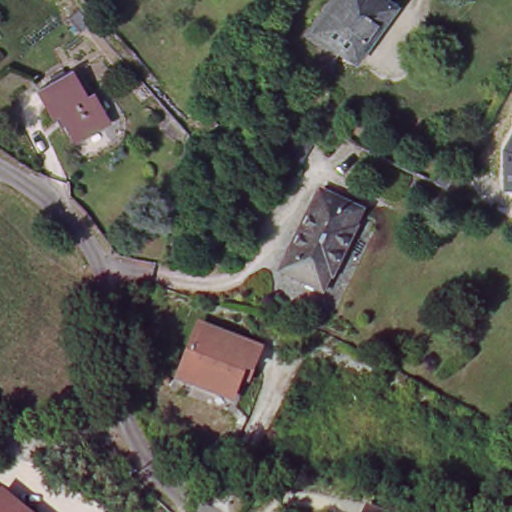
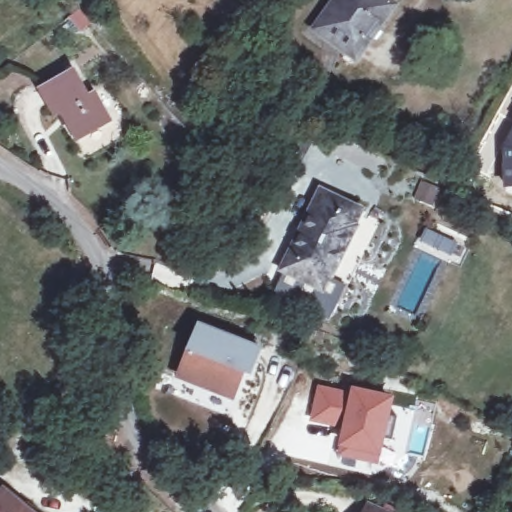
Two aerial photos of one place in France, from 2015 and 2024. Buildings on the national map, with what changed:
unchanged [(379,20),(354,54),(317,29),(338,0),(392,0),(399,4),(385,24),(379,20)]
unchanged [(85,30),(72,15),(82,8),(95,22),(85,30)]
unchanged [(96,92),(113,120),(80,138),(64,113),(59,116),(42,88),(75,69),(91,94),(96,92)]
unchanged [(502,148),(512,133),(512,189),(503,189),(502,148)]
unchanged [(458,191),(438,182),(448,163),(467,171),(458,191)]
unchanged [(355,226),(358,228),(335,275),(332,273),(325,289),(285,270),(323,191),(363,210),(355,226)]
unchanged [(253,367),(246,364),(233,396),(182,376),(203,324),(261,347),(253,367)]
new [(351,392),(352,387),(396,398),(382,457),(381,466),(337,455),(339,446),(345,429),(309,422),(318,386),(351,392)]
unchanged [(0,490),(27,512),(0,512),(0,491),(0,490)]
unchanged [(364,509),(371,512),(363,512),(364,509)]

